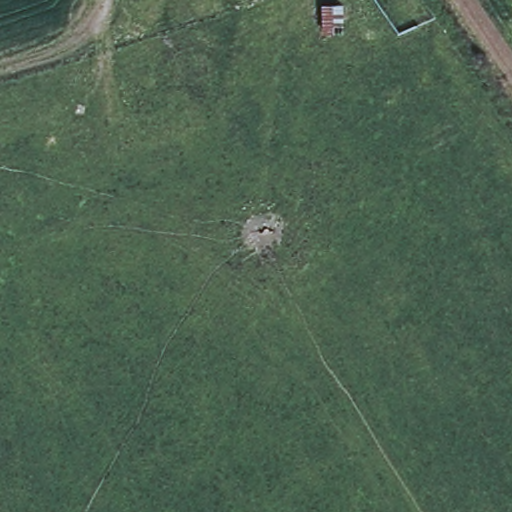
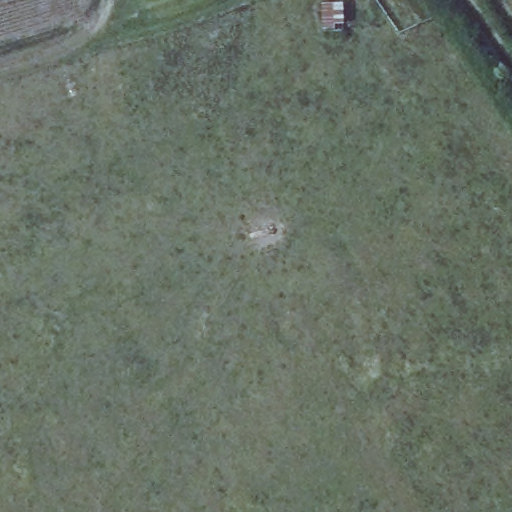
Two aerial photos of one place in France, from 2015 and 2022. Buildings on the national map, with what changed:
unchanged [(340,5),(340,33),(322,34),(320,9),(340,5)]

